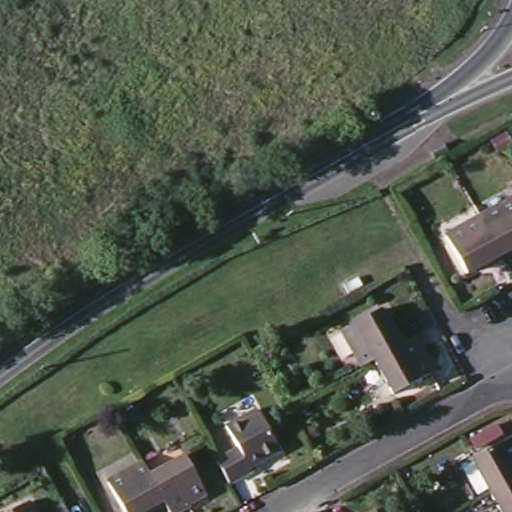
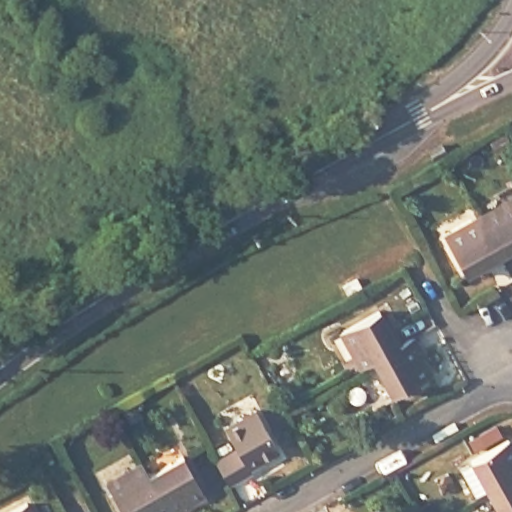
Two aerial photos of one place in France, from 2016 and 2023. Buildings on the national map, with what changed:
unchanged [(512,197),(512,252),(503,257),(481,215),(512,197)]
unchanged [(503,257),(483,268),(481,262),(465,270),(444,234),(481,215),(503,257)]
unchanged [(342,329),(377,310),(387,328),(393,325),(403,342),(370,360),(361,365),(342,329)]
unchanged [(421,349),(424,354),(417,358),(427,376),(388,396),(370,360),(403,342),(413,336),(421,349)]
unchanged [(241,445),(228,422),(258,405),(282,447),(250,464),(252,468),(229,481),(216,458),(241,445)]
unchanged [(487,494),(467,458),(500,441),(507,455),(512,453),(512,481),(487,494)]
unchanged [(162,507),(144,476),(181,457),(202,495),(184,505),(187,510),(182,512),(165,512),(162,507)]
unchanged [(144,476),(162,507),(151,512),(143,512),(142,511),(140,512),(120,512),(105,482),(139,465),(144,476)]
unchanged [(487,494),(512,481),(512,512),(497,512),(487,494)]
unchanged [(29,502),(33,512),(5,512),(29,502)]

